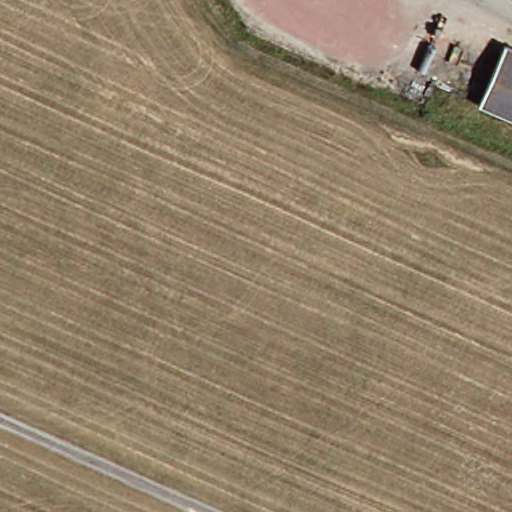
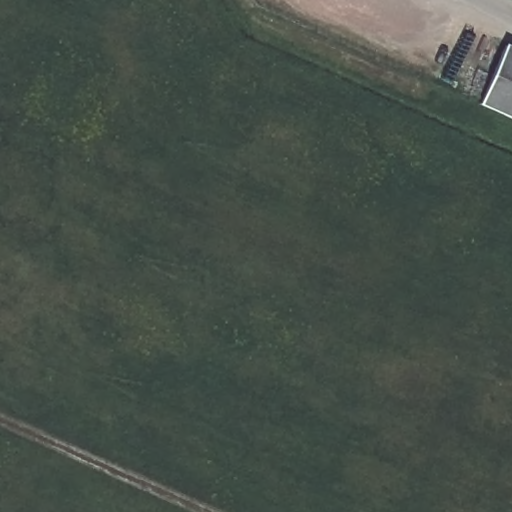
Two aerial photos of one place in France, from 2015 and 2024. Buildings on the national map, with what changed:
unchanged [(512,120),(483,107),(506,46),(512,49),(512,120)]

